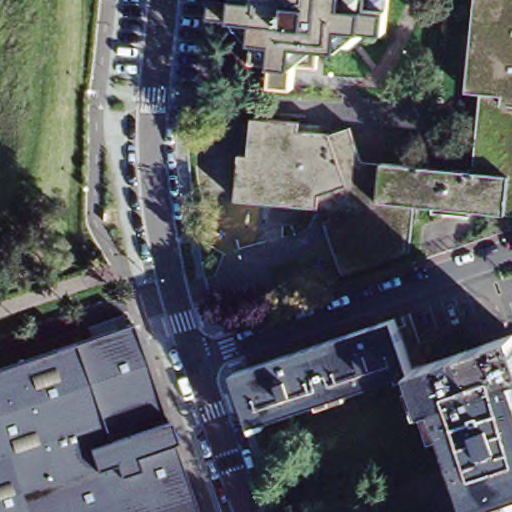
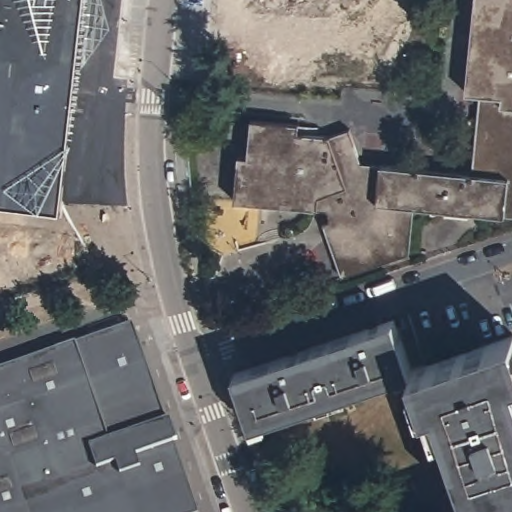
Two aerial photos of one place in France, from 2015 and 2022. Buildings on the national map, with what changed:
new [(55,221),(0,215),(0,0),(78,0),(55,221)]
demolished [(405,42),(365,39),(363,57),(340,56),(338,77),(315,74),(312,97),(291,94),(292,72),(272,71),(275,27),(233,22),(235,4),(258,6),(259,0),(409,0),(405,42)]
unchanged [(412,207),(408,256),(342,277),(320,223),(326,221),(323,212),(235,204),(239,156),(252,157),(255,122),(302,127),(301,136),(336,139),(345,135),(360,167),(468,176),(476,95),(468,93),(476,0),(512,0),(512,217),(412,207)]
unchanged [(392,302),(410,355),(511,319),(512,319),(512,483),(472,497),(478,512),(428,512),(468,498),(432,393),(422,397),(408,356),(255,409),(237,355),(392,302)]
unchanged [(157,422),(161,420),(172,447),(167,448),(189,512),(0,512),(0,372),(125,328),(157,422)]

